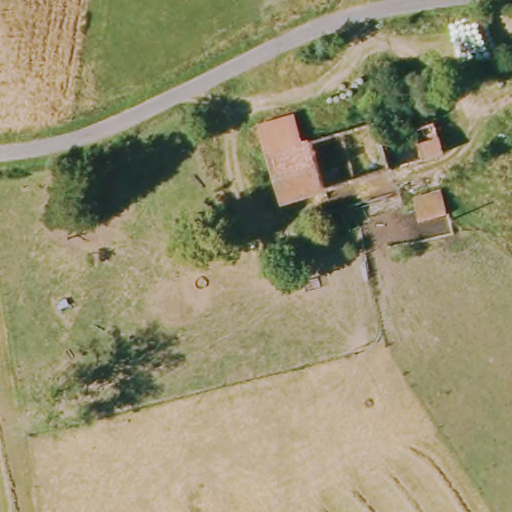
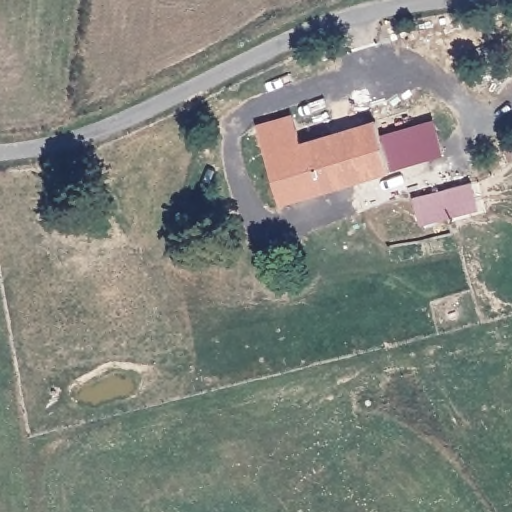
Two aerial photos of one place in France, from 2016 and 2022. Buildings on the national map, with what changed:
unchanged [(293,113),(301,141),(310,139),(322,188),(281,198),(260,122),(293,113)]
demolished [(380,121),(387,146),(393,168),(322,188),(310,139),(380,121)]
demolished [(413,140),(410,128),(438,121),(446,153),(393,168),(387,146),(413,140)]
unchanged [(430,196),(435,217),(410,223),(405,202),(430,196)]

